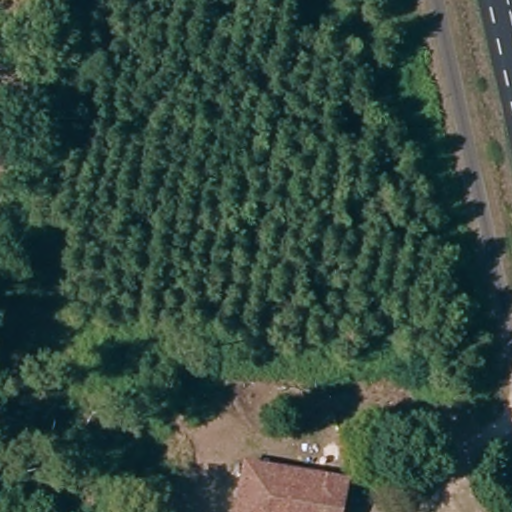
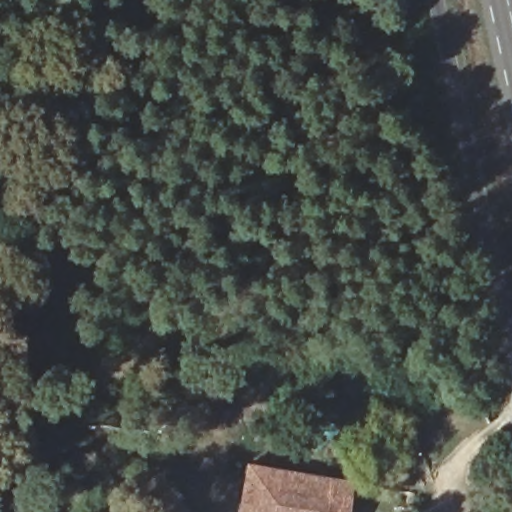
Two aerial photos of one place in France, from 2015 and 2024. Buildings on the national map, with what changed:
unchanged [(328,480),(322,512),(233,512),(242,465),(328,480)]
unchanged [(340,512),(322,512),(328,480),(346,483),(340,512)]

